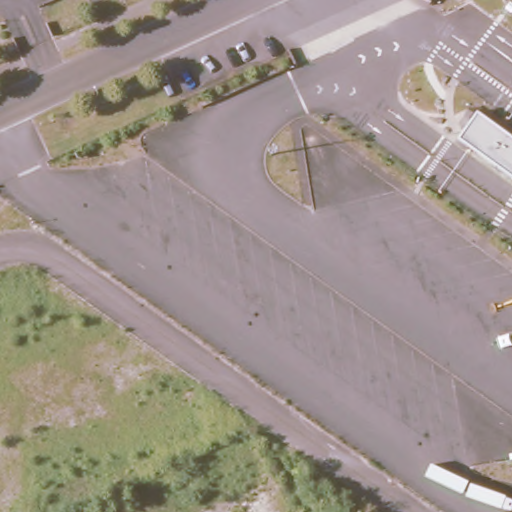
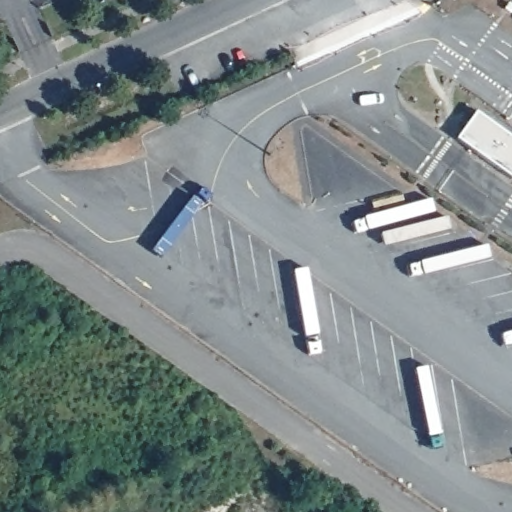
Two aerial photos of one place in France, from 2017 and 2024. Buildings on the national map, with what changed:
unchanged [(512,138),(512,184),(456,140),(476,112),(512,138)]

